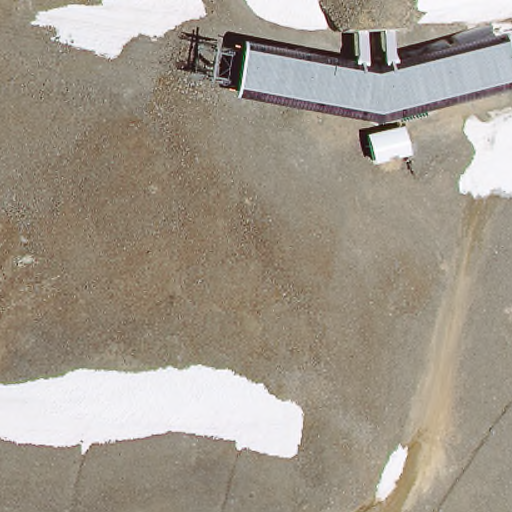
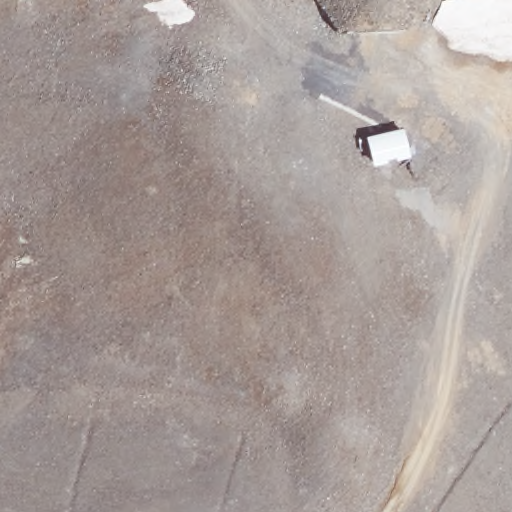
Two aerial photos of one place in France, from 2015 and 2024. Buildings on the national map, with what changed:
demolished [(376,65),(510,32),(512,44),(512,88),(377,122),(231,95),(242,42),(376,65)]
unchanged [(363,135),(402,126),(412,154),(368,163),(363,135)]

